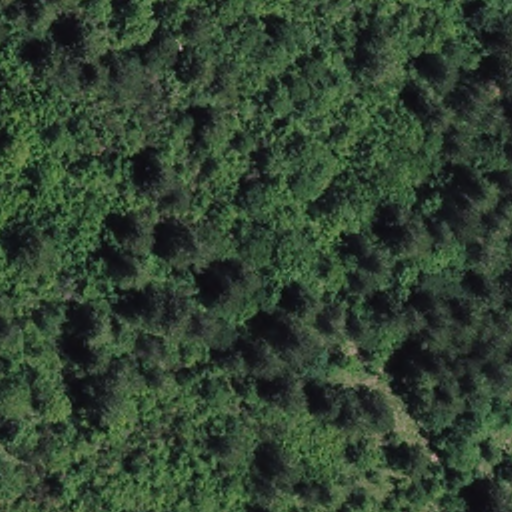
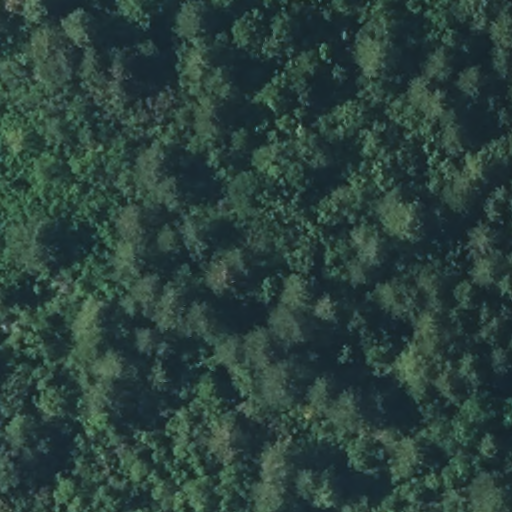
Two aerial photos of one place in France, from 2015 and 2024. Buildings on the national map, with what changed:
[]

